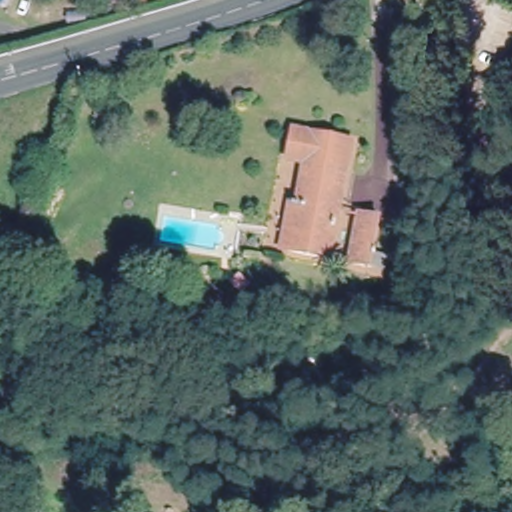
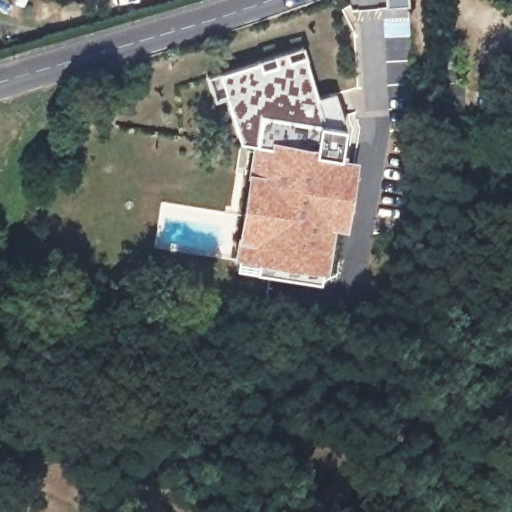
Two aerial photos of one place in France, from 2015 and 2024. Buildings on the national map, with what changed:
new [(236,257),(232,257),(245,179),(251,142),(239,140),(225,94),(212,98),(205,74),(303,45),(317,96),(333,90),(345,128),(340,156),(357,159),(346,231),(333,229),(326,271),(320,270),(319,281),(236,269),(236,257)]
demolished [(290,160),(295,131),(351,141),(330,259),(290,252),(299,205),(307,163),(290,160)]
demolished [(347,263),(356,215),(375,219),(369,255),(367,267),(347,263)]

